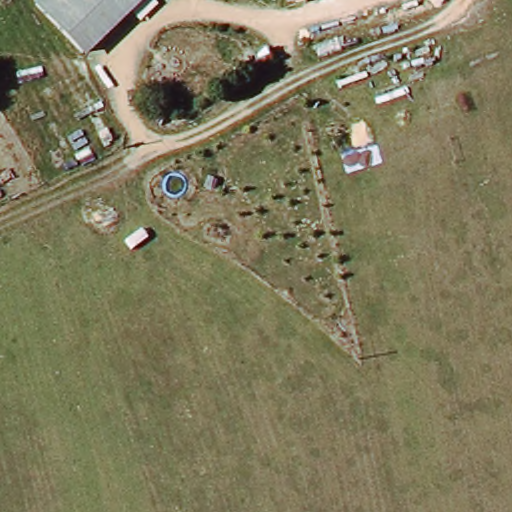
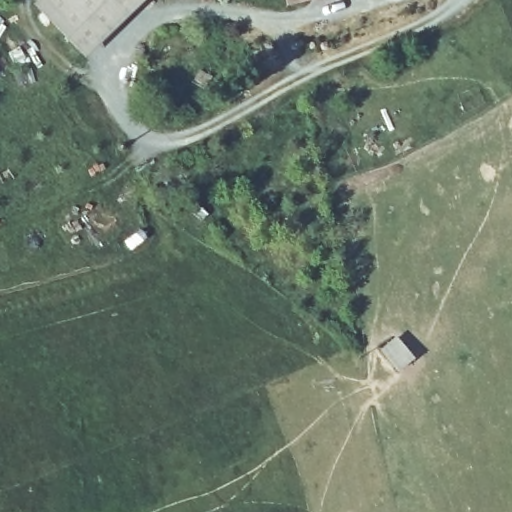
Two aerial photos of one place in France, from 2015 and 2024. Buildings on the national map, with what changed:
unchanged [(33,2),(36,0),(146,0),(85,59),(33,2)]

